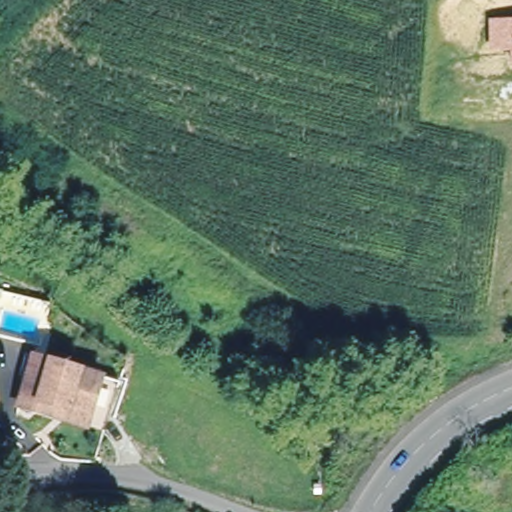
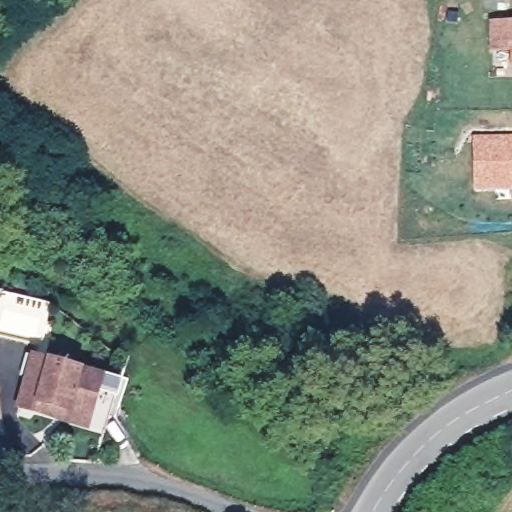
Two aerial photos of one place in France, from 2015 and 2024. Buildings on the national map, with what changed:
unchanged [(512,19),(512,67),(511,67),(511,51),(491,52),(490,19),(512,19)]
new [(512,203),(511,203),(510,191),(473,191),(472,133),(512,133),(512,203)]
unchanged [(20,406),(34,357),(121,381),(107,430),(89,425),(38,411),(20,406)]

